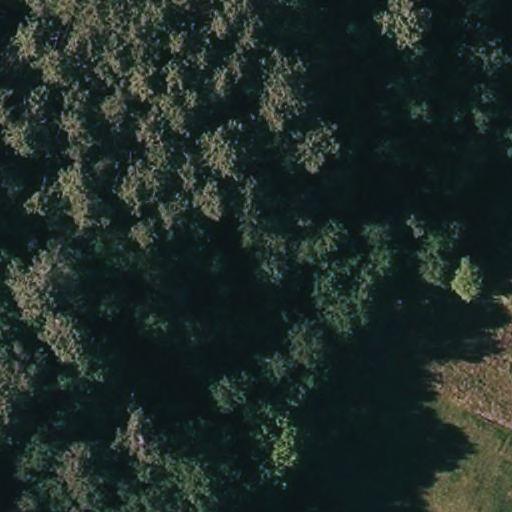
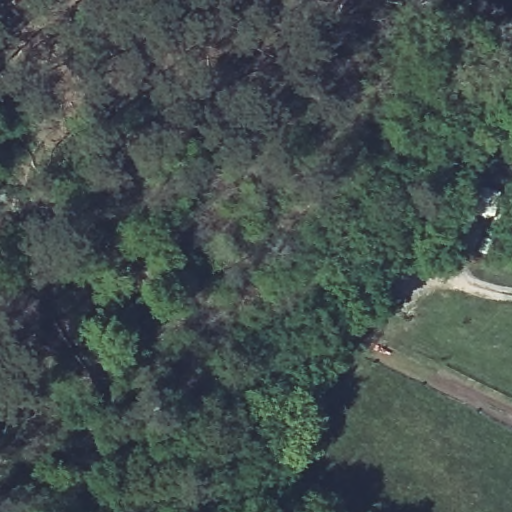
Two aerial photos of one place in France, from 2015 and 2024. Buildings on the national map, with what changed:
unchanged [(497,132),(512,142),(512,169),(487,206),(460,187),(497,132)]

